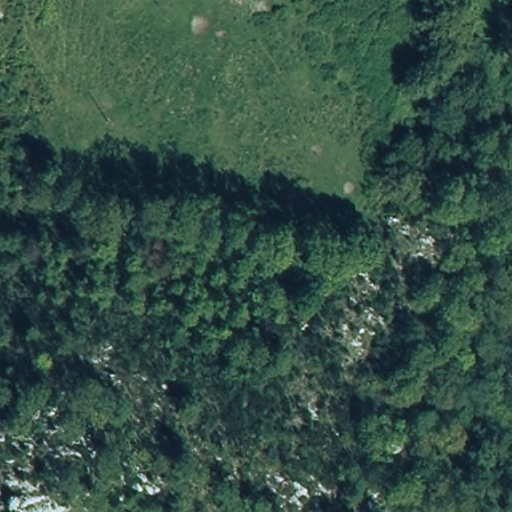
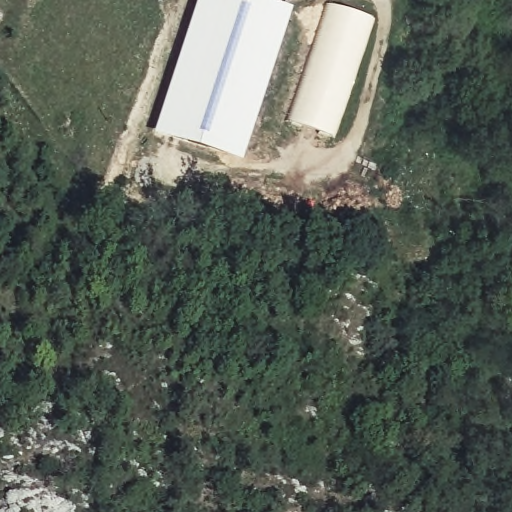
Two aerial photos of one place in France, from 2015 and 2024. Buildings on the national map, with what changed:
new [(241,161),(153,133),(196,0),(264,0),(291,9),(241,161)]
new [(336,137),(288,122),(327,6),(374,20),(336,137)]

